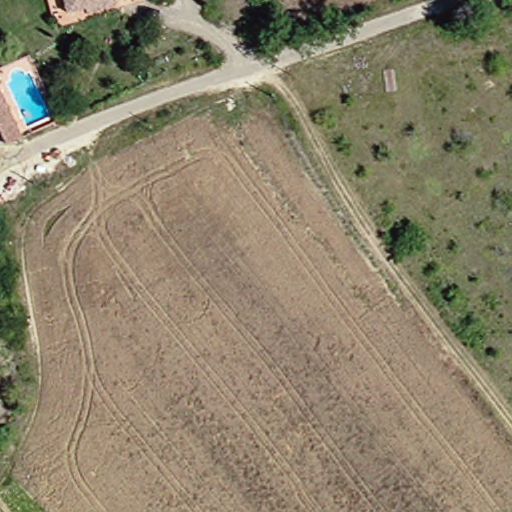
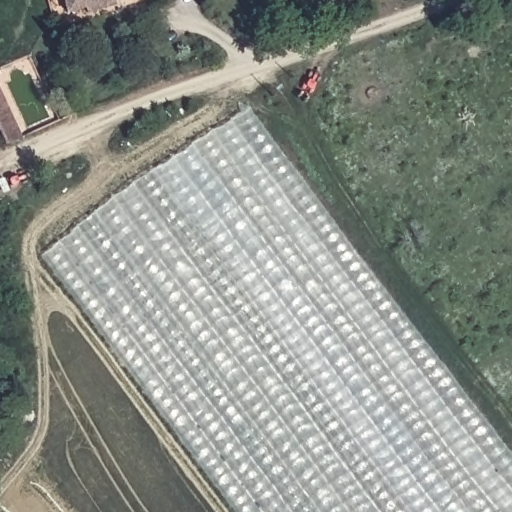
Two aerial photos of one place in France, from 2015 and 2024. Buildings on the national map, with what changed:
unchanged [(128,0),(130,4),(102,14),(101,12),(82,19),(76,0),(128,0)]
new [(23,139),(8,145),(0,127),(0,90),(23,139)]
new [(40,255),(247,107),(512,453),(512,512),(235,512),(40,255)]

